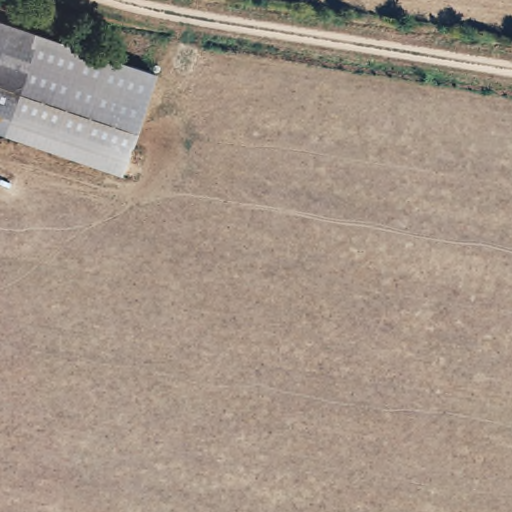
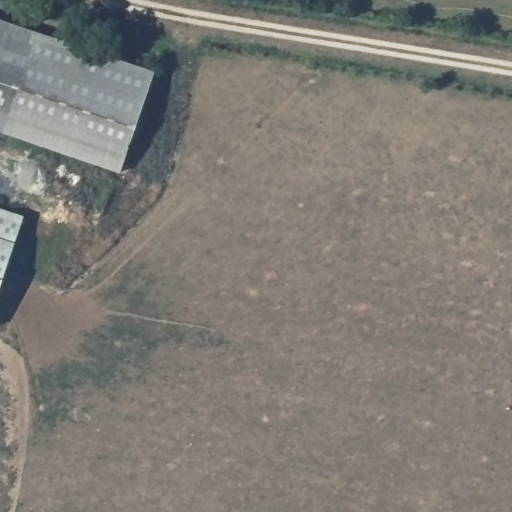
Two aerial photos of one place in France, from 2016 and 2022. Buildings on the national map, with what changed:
unchanged [(0,131),(0,19),(40,31),(5,132),(0,131)]
unchanged [(156,71),(122,174),(5,132),(40,31),(156,71)]
new [(0,291),(0,211),(24,219),(0,291)]

